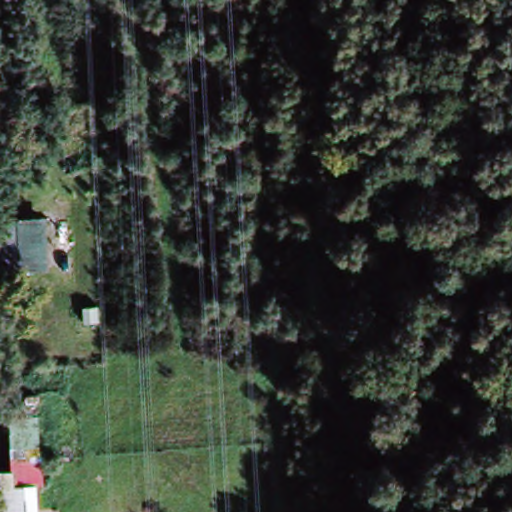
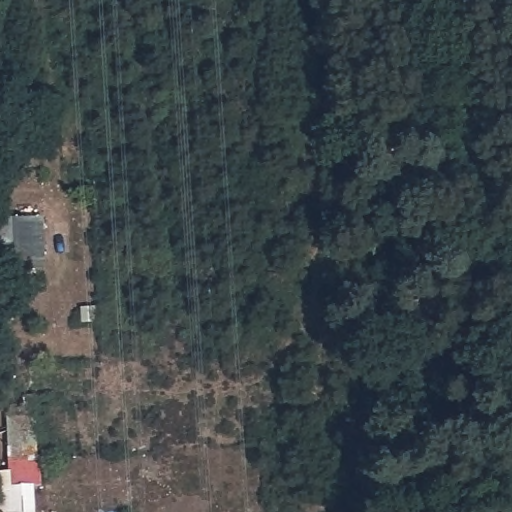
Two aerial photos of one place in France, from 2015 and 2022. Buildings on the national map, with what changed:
unchanged [(7,447),(37,445),(44,480),(11,488),(7,447)]
unchanged [(11,492),(30,493),(32,512),(11,512),(11,492)]

